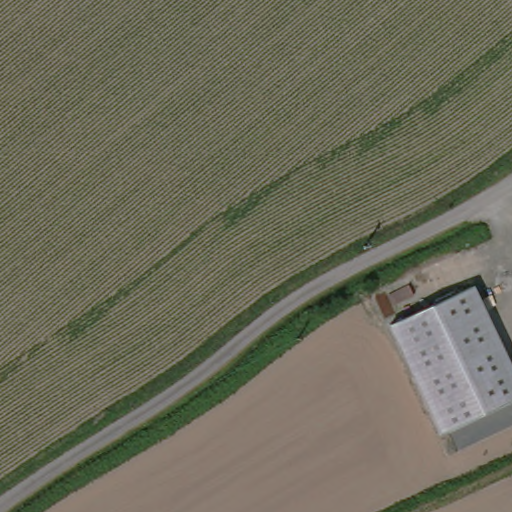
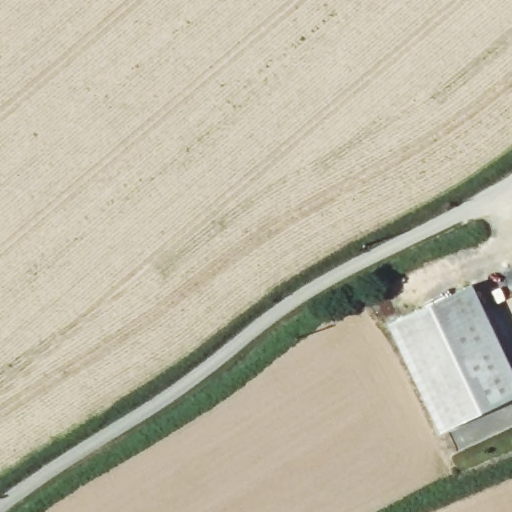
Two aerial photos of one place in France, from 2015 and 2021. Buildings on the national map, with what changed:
unchanged [(390,327),(473,286),(512,366),(512,397),(441,431),(390,327)]

